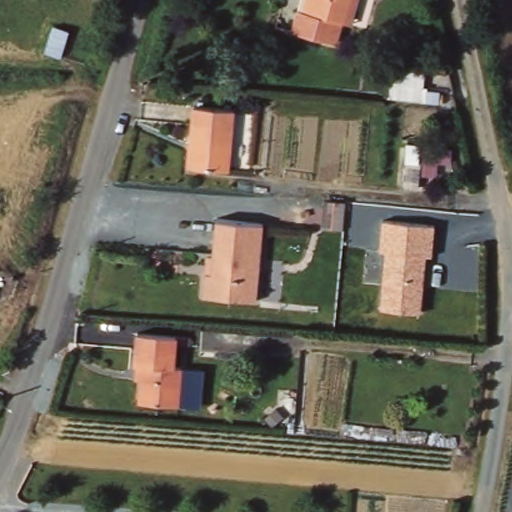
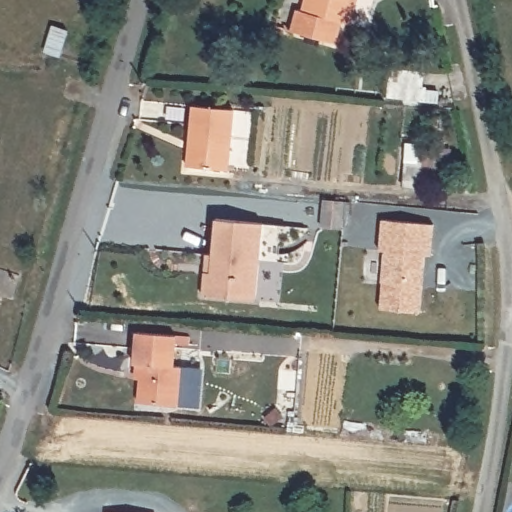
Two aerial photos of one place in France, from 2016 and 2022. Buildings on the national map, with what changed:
unchanged [(342,22),(338,45),(294,32),(298,10),(305,11),(307,0),(360,0),(355,25),(342,22)]
unchanged [(72,27),(64,57),(46,52),(54,25),(72,27)]
unchanged [(442,105),(390,100),(391,87),(429,89),(430,78),(444,79),(442,105)]
unchanged [(232,172),(211,170),(211,165),(189,163),(193,107),(236,109),(232,172)]
unchanged [(209,272),(215,272),(215,259),(218,219),(265,222),(262,262),(260,299),(207,296),(209,272)]
unchanged [(435,222),(431,255),(426,255),(420,313),(379,310),(386,250),(379,249),(382,219),(435,222)]
unchanged [(27,276),(17,302),(0,296),(0,278),(4,267),(27,276)]
unchanged [(179,367),(185,367),(184,407),(140,402),(142,380),(137,380),(137,362),(139,332),(181,336),(179,367)]

